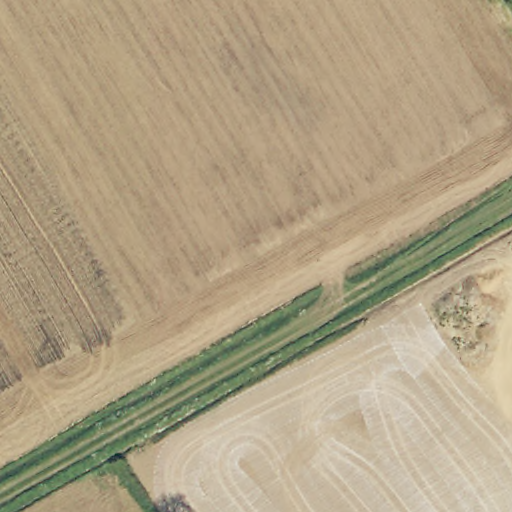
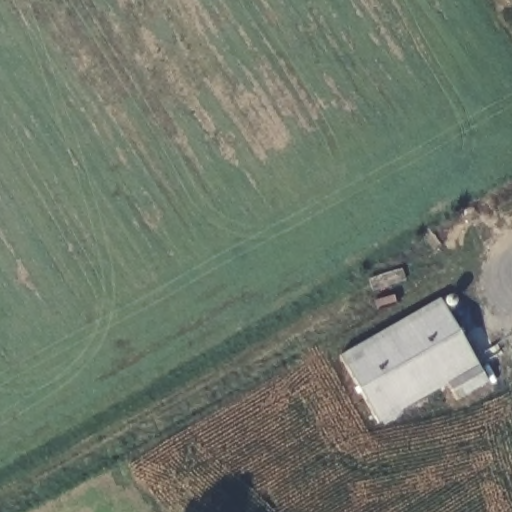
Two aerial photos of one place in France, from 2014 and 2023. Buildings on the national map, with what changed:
new [(457,400),(447,384),(378,423),(339,355),(439,298),(478,365),(488,382),(457,400)]

